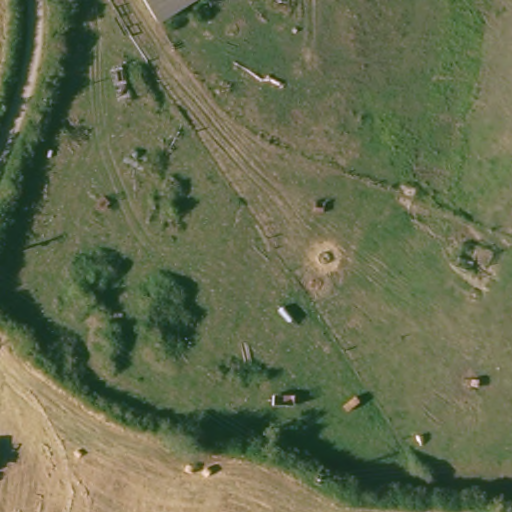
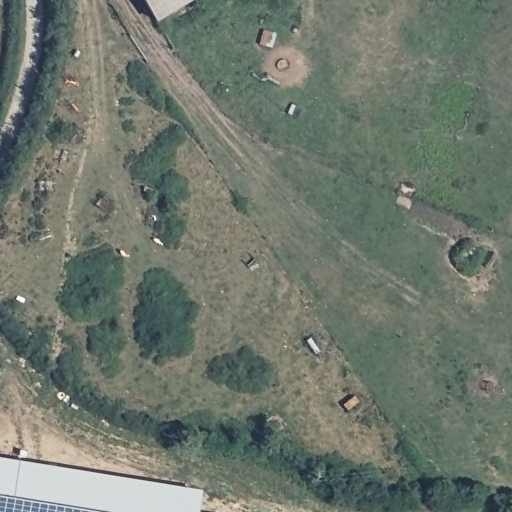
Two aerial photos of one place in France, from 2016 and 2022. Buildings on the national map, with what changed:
unchanged [(152,20),(141,0),(187,0),(152,20)]
new [(205,494),(200,512),(0,512),(0,457),(205,494)]

